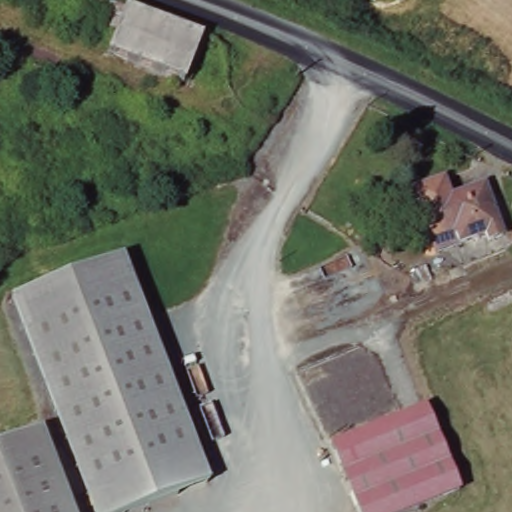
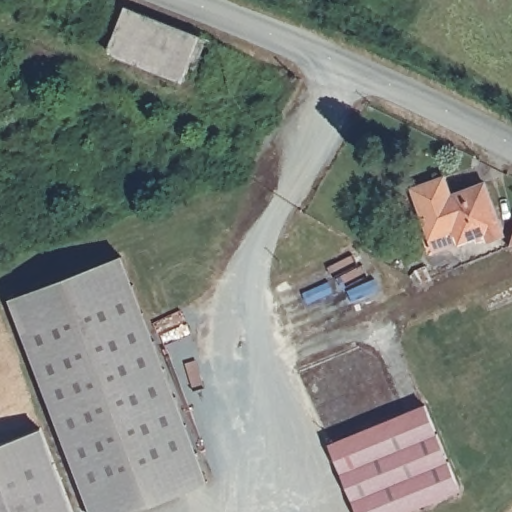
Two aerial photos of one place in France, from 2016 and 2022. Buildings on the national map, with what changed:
unchanged [(200,36),(182,82),(106,53),(125,6),(200,36)]
unchanged [(430,236),(411,189),(443,176),(450,195),(483,183),(503,234),(488,241),(486,233),(461,243),(436,252),(430,236)]
unchanged [(512,235),(512,247),(508,249),(512,235)]
unchanged [(209,480),(127,512),(92,512),(9,297),(124,257),(209,480)]
unchanged [(423,404),(457,490),(404,512),(357,512),(330,445),(423,404)]
unchanged [(46,433),(78,512),(0,512),(0,452),(46,433)]

